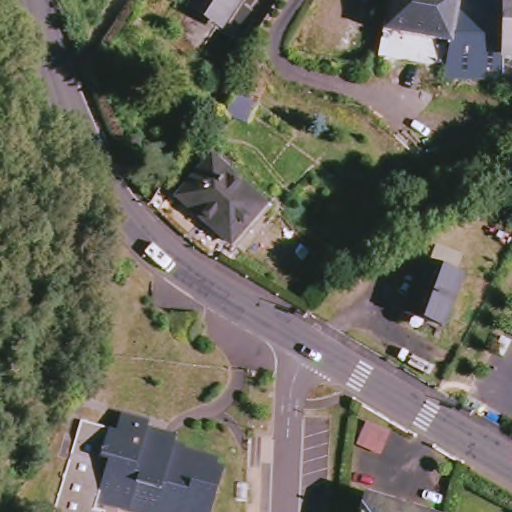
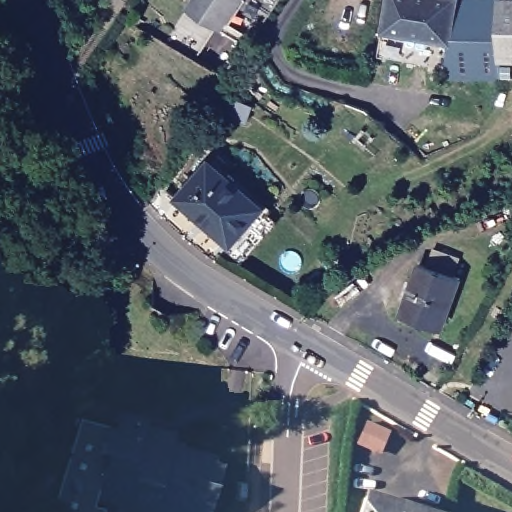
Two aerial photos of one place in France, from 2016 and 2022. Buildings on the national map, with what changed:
unchanged [(196,7),(201,0),(249,0),(230,29),(196,7)]
unchanged [(387,29),(393,0),(465,0),(457,44),(387,29)]
unchanged [(512,0),(512,79),(507,79),(506,0),(512,0)]
unchanged [(248,122),(226,114),(230,103),(232,99),(253,108),(250,117),(248,122)]
unchanged [(183,204),(216,166),(251,196),(249,198),(268,214),(237,250),(183,204)]
unchanged [(450,325),(408,310),(427,262),(468,278),(450,325)]
unchanged [(239,512),(155,512),(156,509),(127,501),(123,512),(83,512),(109,429),(143,437),(147,422),(174,429),(173,434),(187,437),(184,445),(208,451),(206,455),(243,465),(241,473),(249,474),(239,512)]
unchanged [(384,429),(375,450),(356,442),(366,422),(384,429)]
unchanged [(365,498),(412,512),(360,512),(365,498)]

